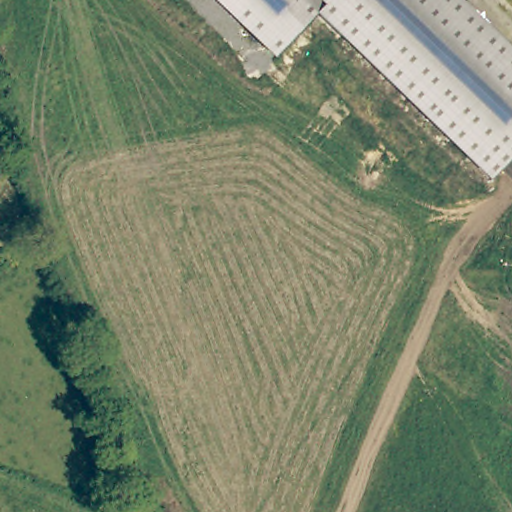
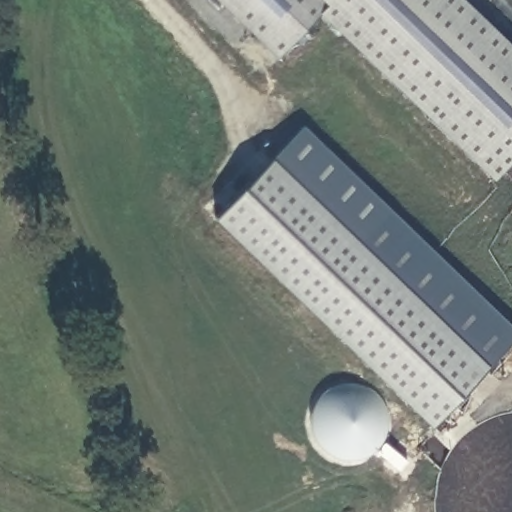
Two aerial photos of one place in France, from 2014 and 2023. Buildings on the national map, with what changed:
unchanged [(512,160),(491,181),(317,15),(275,57),(215,0),(463,0),(512,46),(512,160)]
new [(304,128),(512,327),(512,341),(487,367),(428,425),(214,219),(272,160),(304,128)]

